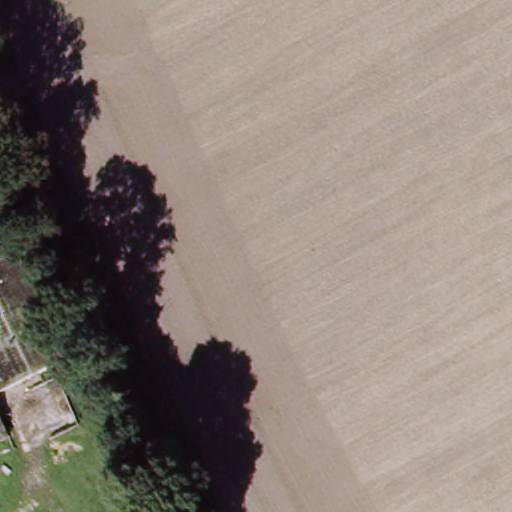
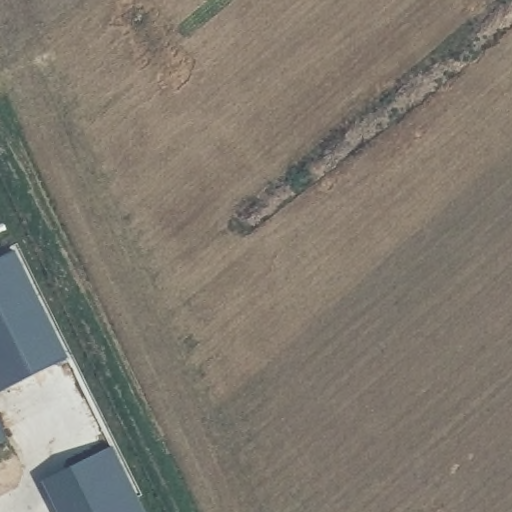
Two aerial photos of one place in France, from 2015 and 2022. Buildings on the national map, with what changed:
new [(0,307),(0,258),(15,251),(69,357),(35,375),(0,307)]
new [(0,343),(0,307),(35,375),(20,382),(0,343)]
new [(0,393),(0,343),(20,382),(0,393)]
new [(6,439),(0,443),(0,426),(6,439)]
demolished [(3,435),(0,437),(0,429),(3,435)]
new [(112,447),(145,512),(59,512),(43,480),(112,447)]

